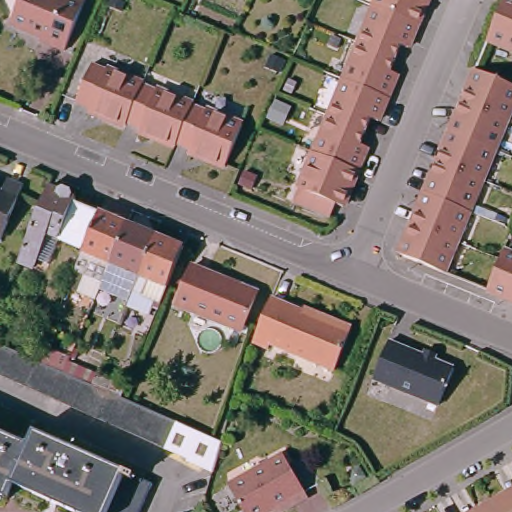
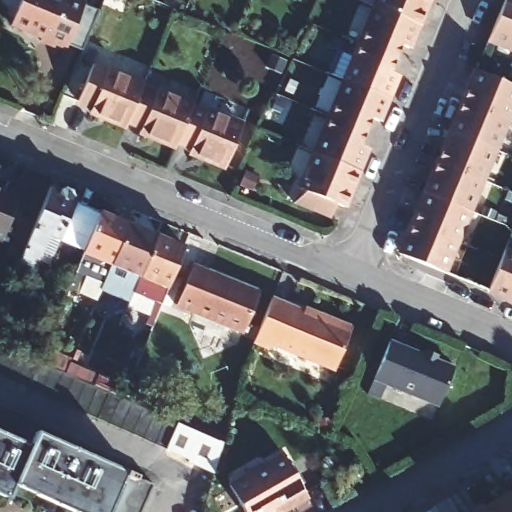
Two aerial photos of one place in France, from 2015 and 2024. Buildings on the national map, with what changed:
unchanged [(63,44),(38,35),(41,27),(28,23),(27,27),(8,20),(16,0),(80,0),(63,44)]
unchanged [(412,27),(368,9),(371,0),(422,0),(412,27)]
unchanged [(512,45),(486,34),(500,0),(512,0),(512,45)]
unchanged [(412,27),(402,50),(395,48),(390,61),(355,47),(354,46),(368,9),(412,27)]
unchanged [(355,47),(390,61),(385,75),(392,77),(383,101),(340,83),(354,46),(355,47)]
unchanged [(512,81),(512,105),(498,140),(452,121),(475,66),(512,81)]
unchanged [(140,88),(130,116),(126,126),(124,130),(87,115),(90,111),(76,105),(91,68),(140,88)]
unchanged [(383,101),(380,109),(374,125),(367,122),(362,135),(325,120),(340,83),(383,101)]
unchanged [(190,108),(175,146),(173,150),(137,136),(139,131),(126,126),(130,116),(140,88),(190,108)]
unchanged [(239,129),(223,171),(187,156),(189,151),(175,146),(190,108),(239,129)]
unchanged [(362,135),(357,149),(363,151),(355,175),(311,157),(325,120),(362,135)]
unchanged [(498,140),(445,274),(404,257),(401,252),(452,121),(498,140)]
unchanged [(355,175),(344,203),(343,203),(337,200),(331,215),(294,200),(311,157),(355,175)]
unchanged [(1,187),(7,176),(20,182),(0,233),(0,187),(1,187)]
unchanged [(50,194),(52,193),(55,191),(57,191),(58,191),(60,193),(63,200),(71,203),(70,207),(85,213),(69,250),(38,238),(25,271),(12,266),(43,191),(50,194)]
unchanged [(119,229),(117,233),(102,270),(97,281),(97,283),(96,285),(92,293),(90,299),(88,303),(62,291),(68,274),(70,270),(90,223),(92,218),(119,229)]
unchanged [(92,293),(96,285),(97,283),(97,281),(102,270),(117,233),(119,229),(147,241),(145,246),(125,294),(125,295),(123,297),(121,304),(92,293)]
unchanged [(174,252),(157,293),(151,309),(123,297),(125,295),(125,294),(145,246),(147,241),(174,252)]
unchanged [(512,256),(512,303),(487,293),(503,253),(512,256)]
unchanged [(258,292),(243,331),(177,305),(192,267),(258,292)]
unchanged [(324,315),(325,312),(349,322),(332,365),(268,339),(265,344),(253,340),(272,295),(324,315)]
unchanged [(450,364),(434,401),(370,374),(385,337),(450,364)]
unchanged [(134,403),(123,428),(0,373),(0,344),(134,403)]
unchanged [(170,448),(155,442),(123,428),(134,403),(135,403),(145,408),(181,423),(170,448)]
unchanged [(222,441),(215,472),(190,461),(191,458),(170,448),(181,423),(222,441)]
unchanged [(105,512),(89,512),(12,478),(5,492),(0,490),(0,427),(28,439),(35,427),(82,448),(103,457),(125,467),(105,512)]
unchanged [(303,502),(286,512),(237,512),(225,490),(279,459),(303,502)]
unchanged [(152,479),(137,512),(105,512),(125,467),(132,470),(152,479)]
unchanged [(507,493),(512,502),(512,512),(481,512),(479,509),(507,493)]

